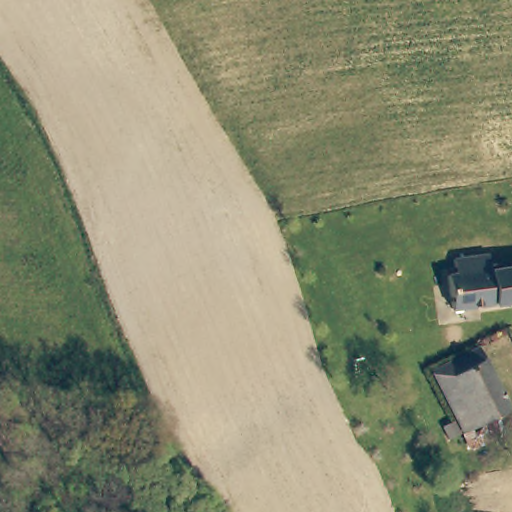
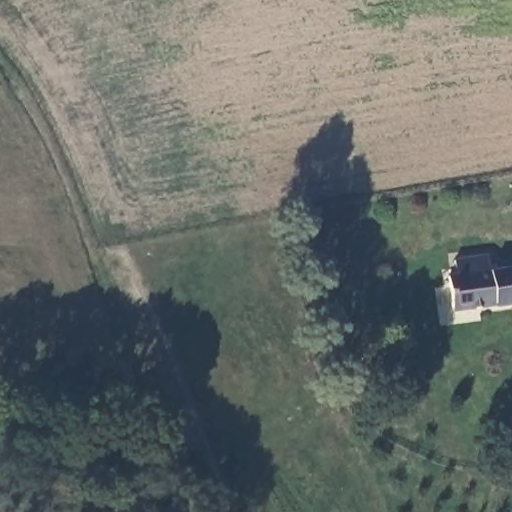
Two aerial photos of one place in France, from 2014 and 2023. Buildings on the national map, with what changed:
unchanged [(447,267),(512,267),(512,268),(512,301),(449,301),(447,267)]
demolished [(464,432),(437,371),(462,361),(486,351),(512,416),(498,421),(464,432)]

